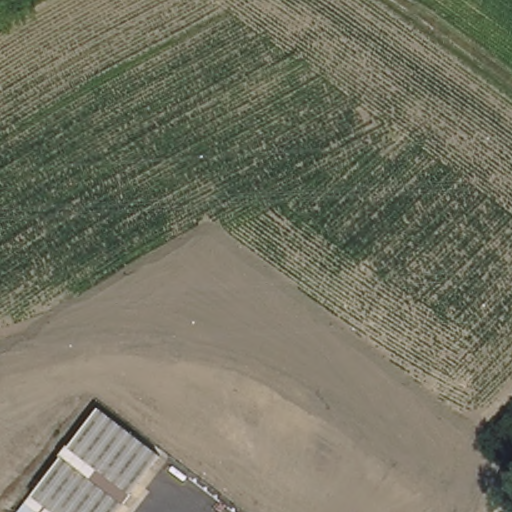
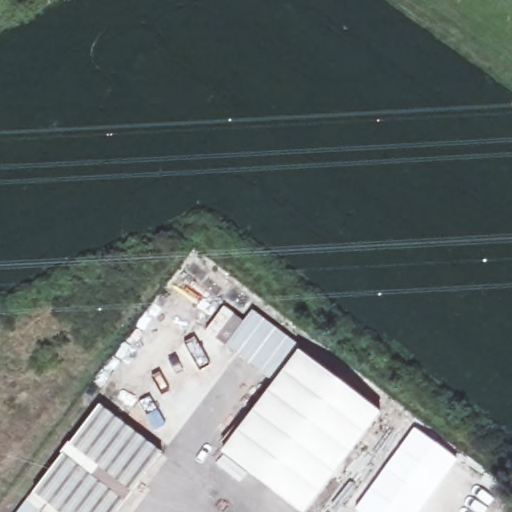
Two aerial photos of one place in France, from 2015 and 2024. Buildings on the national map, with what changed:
new [(382,414),(307,512),(301,512),(224,453),(300,352),(382,414)]
unchanged [(39,512),(42,508),(28,498),(99,406),(160,449),(113,512),(39,512)]
new [(457,459),(417,512),(360,512),(354,507),(415,427),(457,459)]

